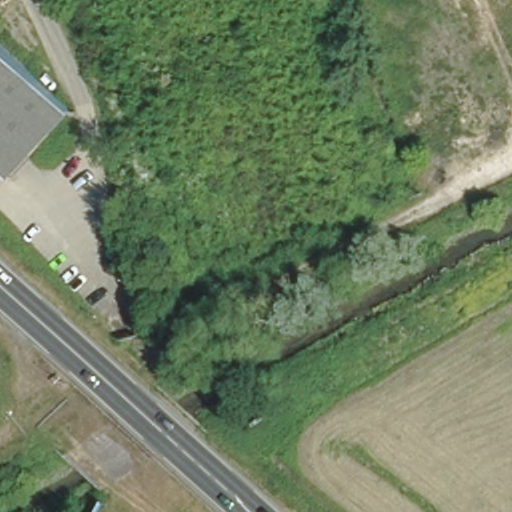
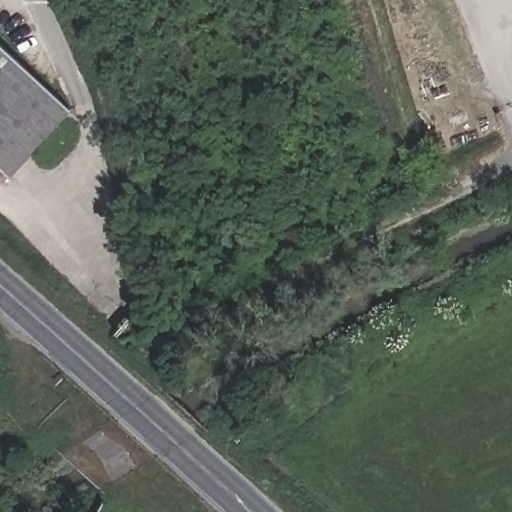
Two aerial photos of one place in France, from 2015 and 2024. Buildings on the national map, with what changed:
unchanged [(1,170),(0,169),(0,39),(66,105),(1,170)]

